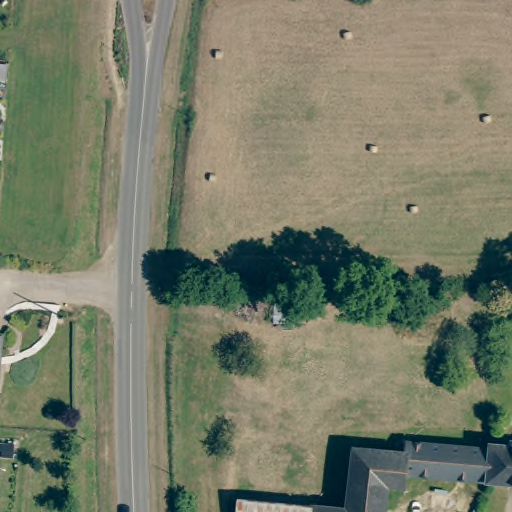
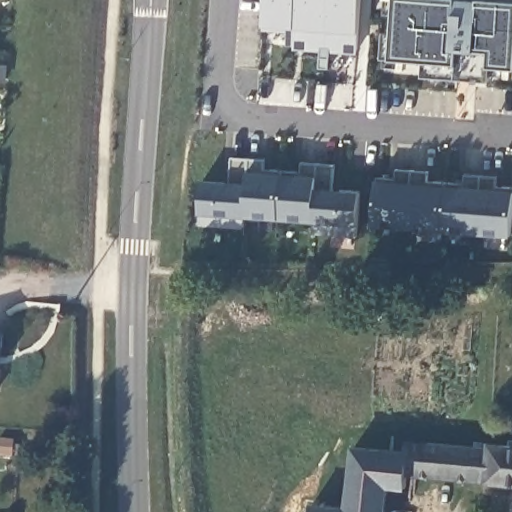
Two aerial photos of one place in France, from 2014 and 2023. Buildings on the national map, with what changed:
new [(262,31),(263,26),(265,0),(360,0),(357,34),(355,55),(291,50),(292,33),(262,31)]
new [(392,58),(397,0),(511,0),(512,0),(512,67),(488,66),(488,80),(426,76),(426,61),(392,58)]
new [(228,183),(231,157),(263,160),(262,173),(299,175),(300,162),(333,166),(332,190),(360,192),(357,225),(356,237),(312,234),(313,222),(244,217),(243,229),(198,225),(199,213),(201,181),(228,183)]
new [(394,182),(396,169),(427,172),(426,185),(463,188),(464,175),(495,177),(494,190),(512,191),(512,222),(511,237),(371,226),(375,181),(394,182)]
unchanged [(0,337),(3,338),(1,393),(0,392),(0,337)]
unchanged [(330,509),(348,510),(351,472),(354,449),(407,452),(408,443),(421,444),(428,444),(490,450),(492,443),(492,445),(490,479),(409,475),(407,486),(387,486),(385,512),(311,512),(312,508),(330,509)]
unchanged [(492,445),(492,443),(512,446),(512,483),(490,479),(492,445)]

